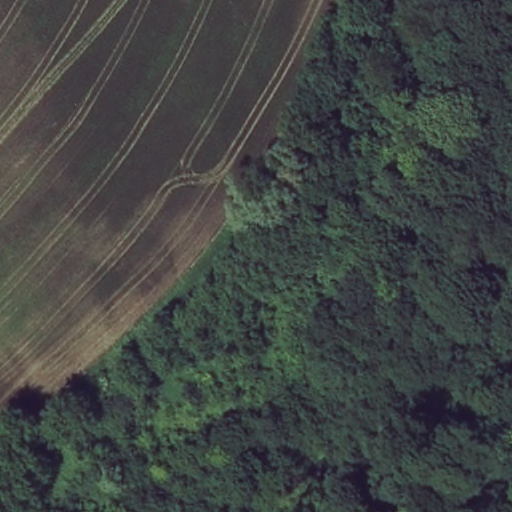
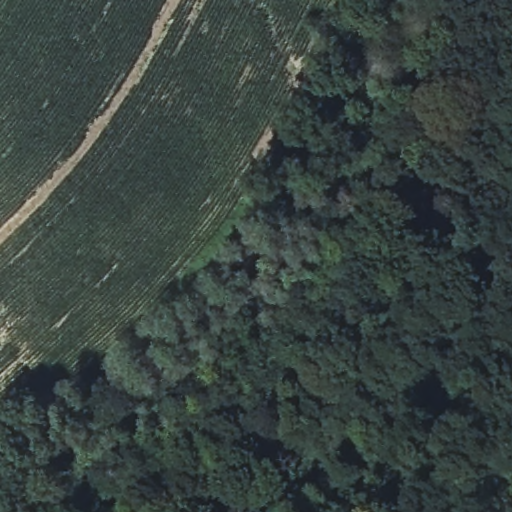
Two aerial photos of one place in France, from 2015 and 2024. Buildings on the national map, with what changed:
[]

